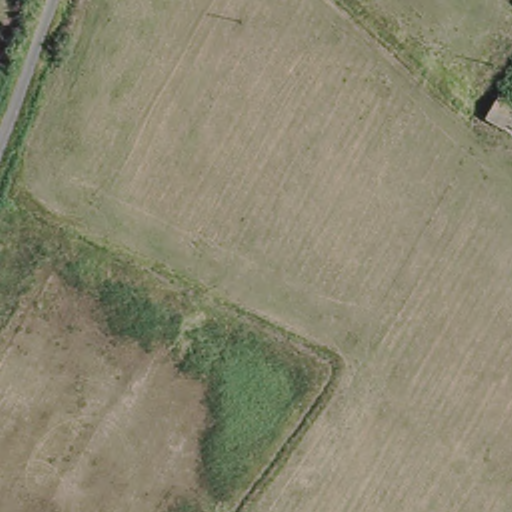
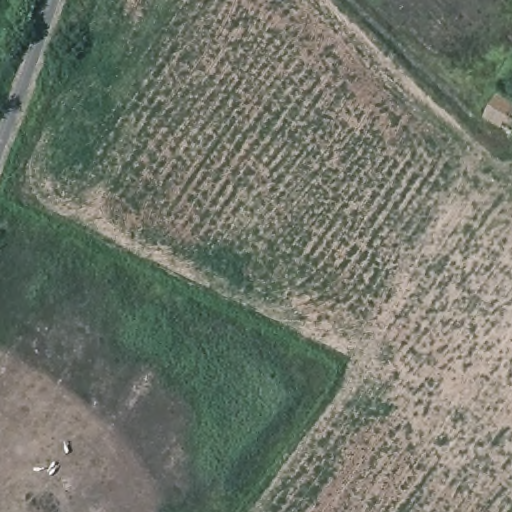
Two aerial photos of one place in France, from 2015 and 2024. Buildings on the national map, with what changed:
unchanged [(487,117),(500,98),(512,106),(512,134),(487,117)]

